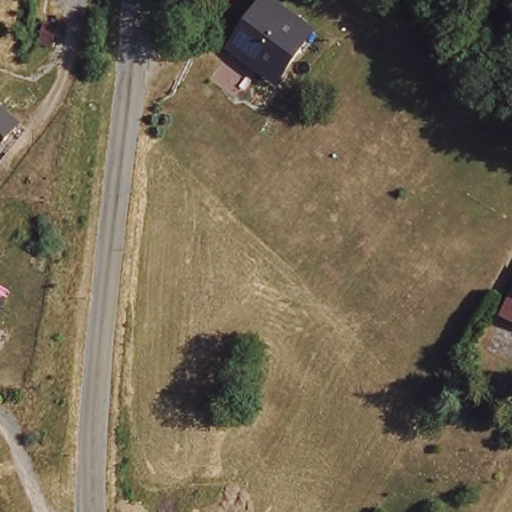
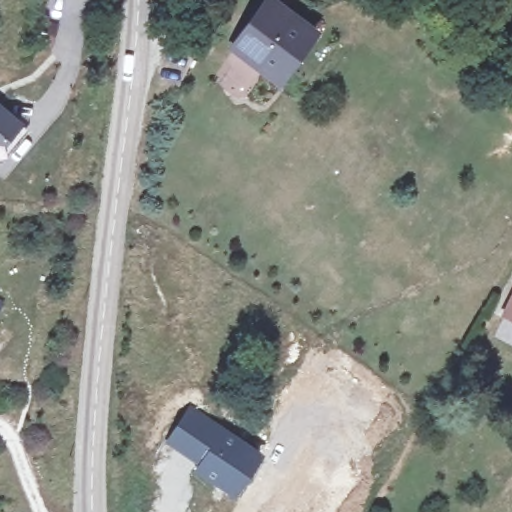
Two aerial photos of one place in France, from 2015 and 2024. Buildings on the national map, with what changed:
unchanged [(279,76),(231,41),(264,0),(281,0),(318,28),(279,76)]
unchanged [(48,10),(43,30),(30,26),(35,7),(48,10)]
unchanged [(0,161),(0,105),(23,125),(0,161)]
unchanged [(512,275),(512,319),(486,308),(504,272),(512,275)]
new [(191,402),(261,450),(233,495),(193,471),(197,465),(164,442),(191,402)]

